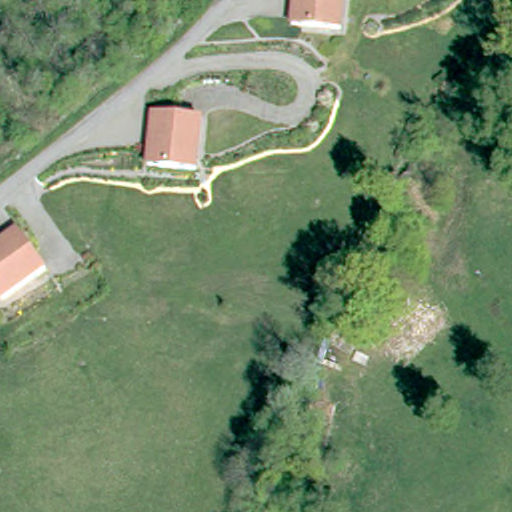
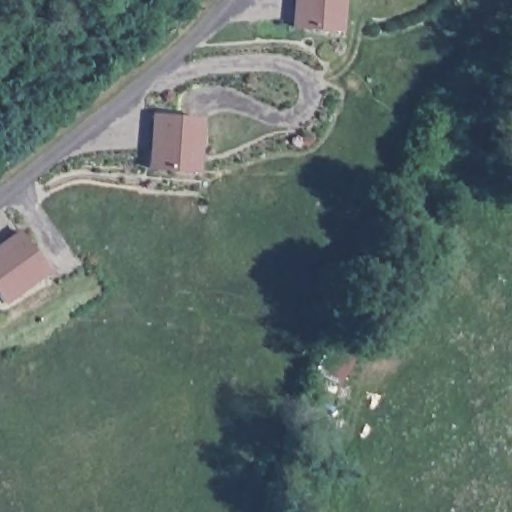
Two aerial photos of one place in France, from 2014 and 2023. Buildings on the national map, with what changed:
unchanged [(290,32),(294,0),(342,0),(338,37),(290,32)]
unchanged [(200,126),(195,178),(148,174),(153,122),(200,126)]
unchanged [(15,236),(42,273),(0,305),(0,247),(15,236)]

